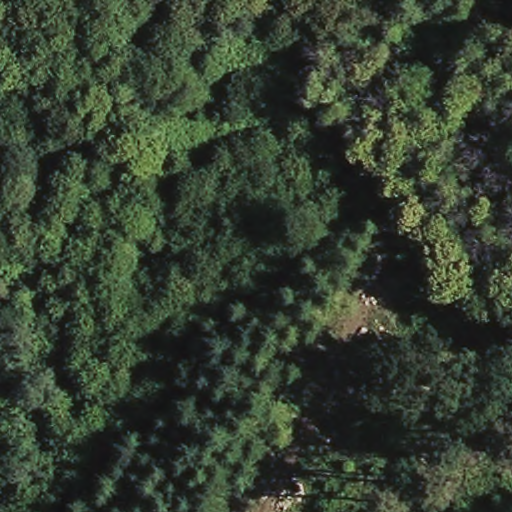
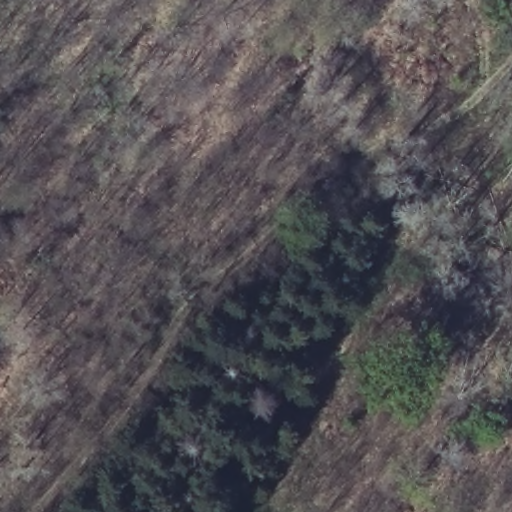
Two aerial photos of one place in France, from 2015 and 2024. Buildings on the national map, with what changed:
[]

